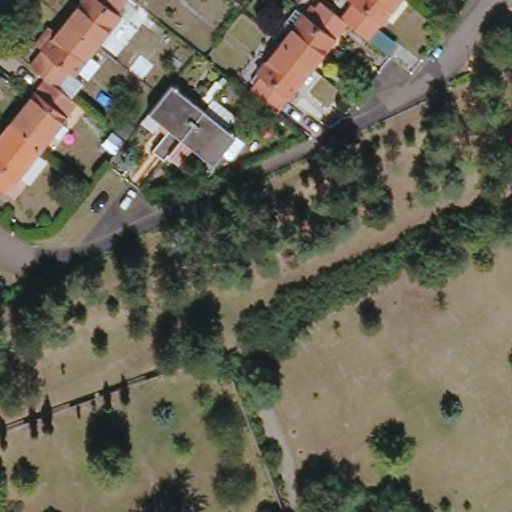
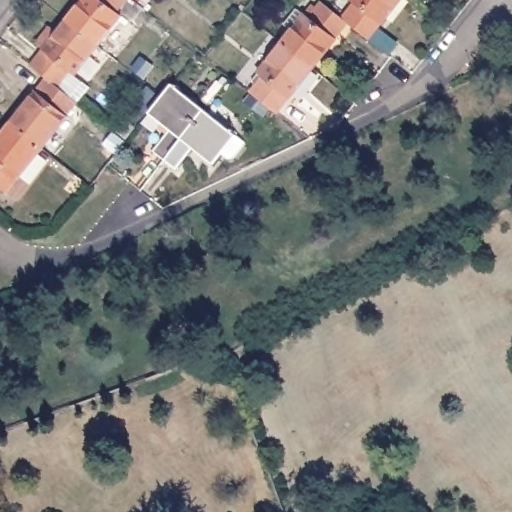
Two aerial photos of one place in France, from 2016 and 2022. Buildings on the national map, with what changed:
unchanged [(68,20),(84,0),(126,0),(117,11),(122,15),(98,44),(68,20)]
unchanged [(281,43),(305,13),(309,16),(321,0),(342,17),(348,22),(312,67),(281,43)]
unchanged [(348,22),(342,17),(353,3),(349,0),(400,0),(369,38),(348,22)]
unchanged [(31,66),(44,49),(36,43),(50,26),(57,33),(68,20),(98,44),(75,75),(84,82),(71,98),(57,86),(46,78),(31,66)]
unchanged [(250,92),(262,77),(257,73),(281,43),(312,67),(276,112),(250,92)]
unchanged [(10,123),(46,78),(57,86),(71,98),(77,102),(41,148),(10,123)]
unchanged [(163,128),(149,117),(161,101),(171,88),(205,114),(166,164),(155,156),(168,139),(160,133),(163,128)]
unchanged [(205,114),(214,102),(240,122),(230,135),(236,140),(214,168),(193,151),(176,173),(166,164),(205,114)]
unchanged [(6,192),(0,188),(0,136),(10,123),(41,148),(6,192)]

